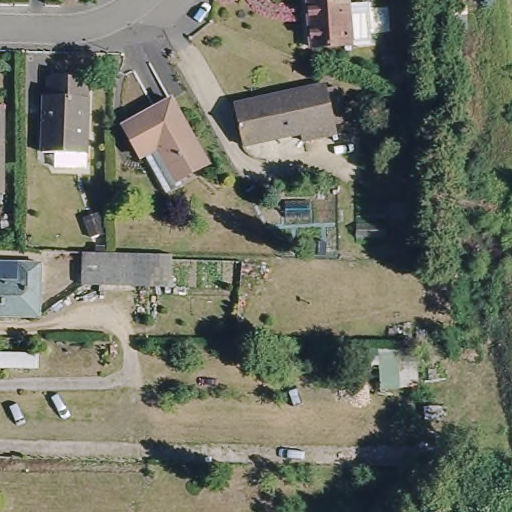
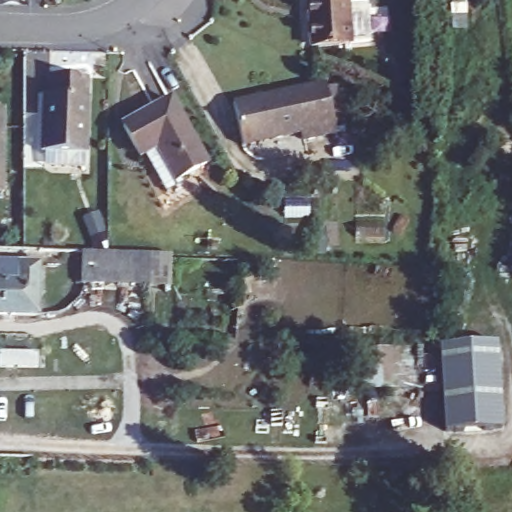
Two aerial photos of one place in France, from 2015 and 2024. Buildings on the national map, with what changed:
unchanged [(309,42),(306,0),(366,0),(367,40),(309,42)]
unchanged [(43,145),(44,95),(53,95),(53,70),(91,70),(89,145),(43,145)]
unchanged [(328,81),(335,132),(305,136),(304,128),(244,137),(237,95),(328,81)]
unchanged [(212,159),(188,172),(191,179),(171,190),(129,118),(177,94),(212,159)]
unchanged [(9,110),(8,187),(0,187),(0,109),(9,110)]
unchanged [(163,251),(162,280),(82,278),(83,248),(103,249),(163,251)]
unchanged [(44,262),(44,314),(0,314),(0,262),(44,262)]
new [(498,342),(503,428),(446,432),(442,347),(498,342)]
new [(378,348),(411,347),(413,389),(380,391),(378,348)]

